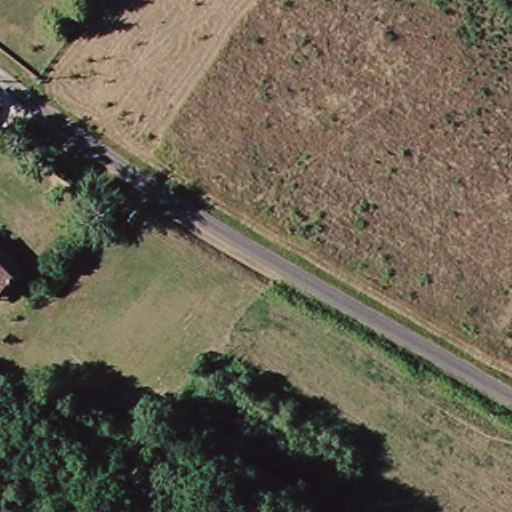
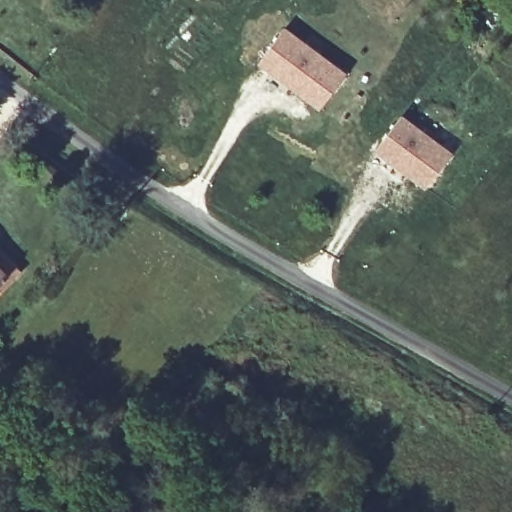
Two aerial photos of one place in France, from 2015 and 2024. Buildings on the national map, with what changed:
new [(321,108),(259,63),(287,26),(347,71),(321,108)]
new [(425,187),(376,152),(403,113),(453,152),(425,187)]
unchanged [(0,270),(0,253),(16,269),(0,287),(0,271),(1,270),(0,270)]
unchanged [(0,271),(0,270),(1,270),(0,271)]

